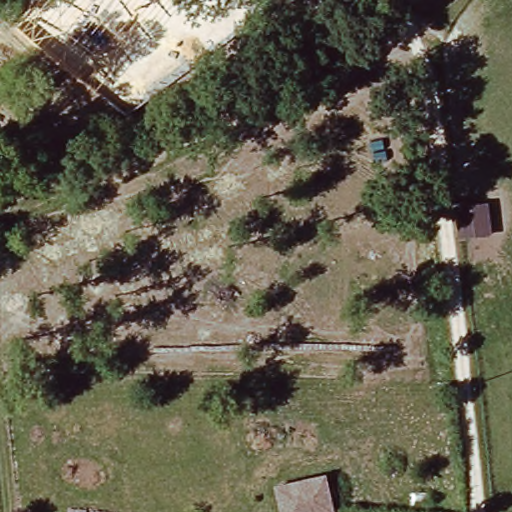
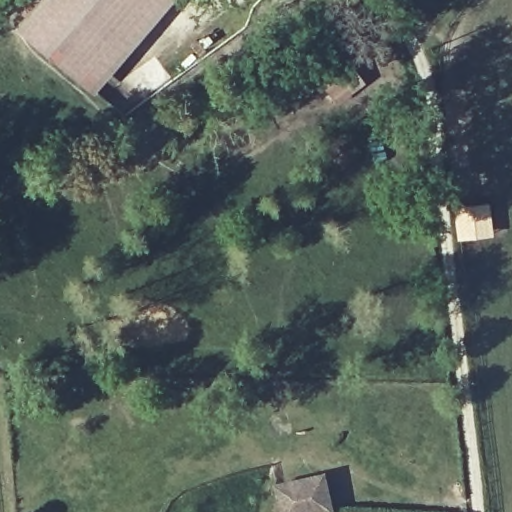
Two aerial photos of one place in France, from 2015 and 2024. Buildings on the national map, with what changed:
new [(172,0),(96,90),(18,24),(39,0),(172,0)]
unchanged [(325,512),(274,512),(268,490),(316,476),(325,512)]

